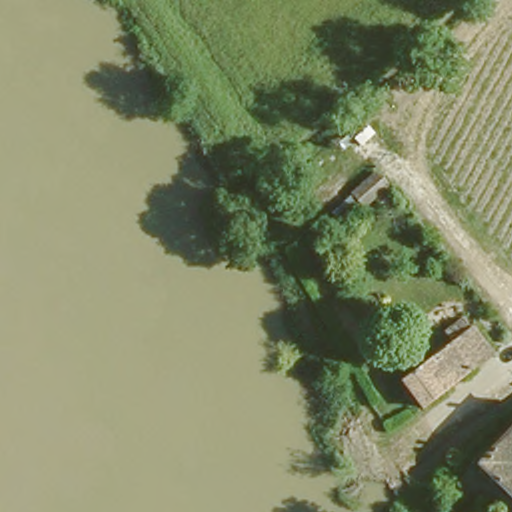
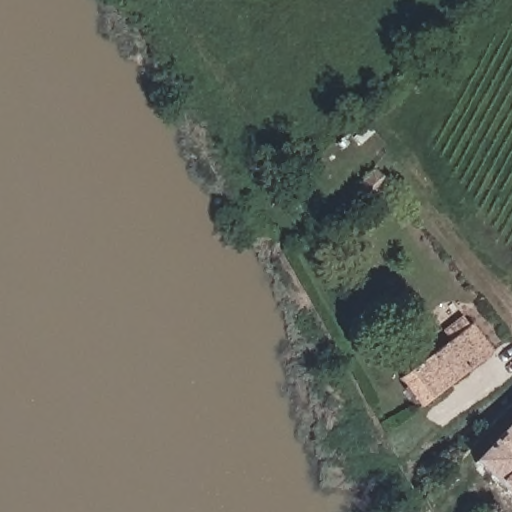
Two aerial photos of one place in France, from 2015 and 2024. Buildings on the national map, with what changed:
unchanged [(377,161),(391,177),(363,201),(347,185),(377,161)]
unchanged [(445,332),(470,314),(494,347),(420,402),(400,376),(450,339),(445,332)]
unchanged [(512,416),(512,480),(482,450),(512,416)]

